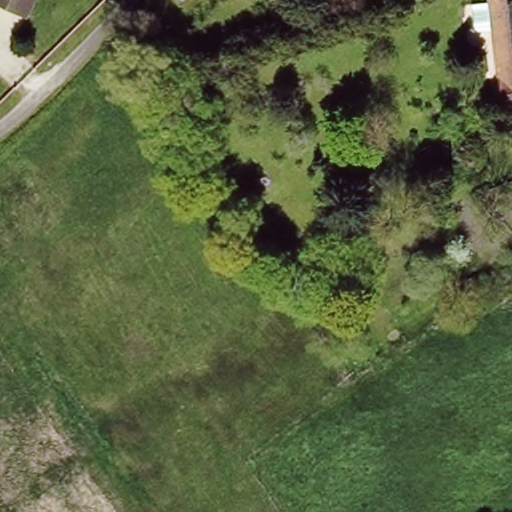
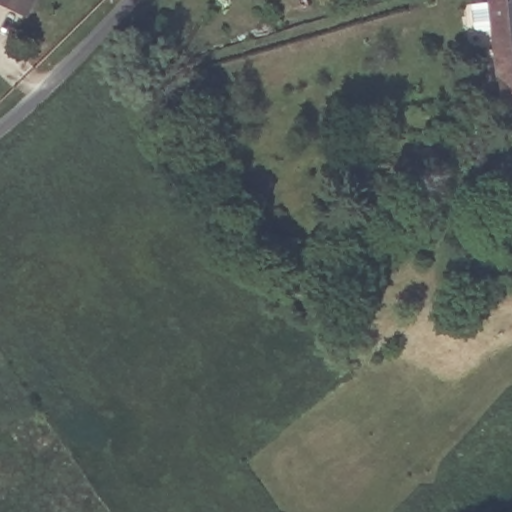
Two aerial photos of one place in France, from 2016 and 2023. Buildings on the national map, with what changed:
unchanged [(29,13),(0,0),(35,0),(29,13)]
unchanged [(512,111),(500,115),(484,0),(512,0),(512,111)]
unchanged [(434,149),(444,169),(429,177),(419,158),(434,149)]

